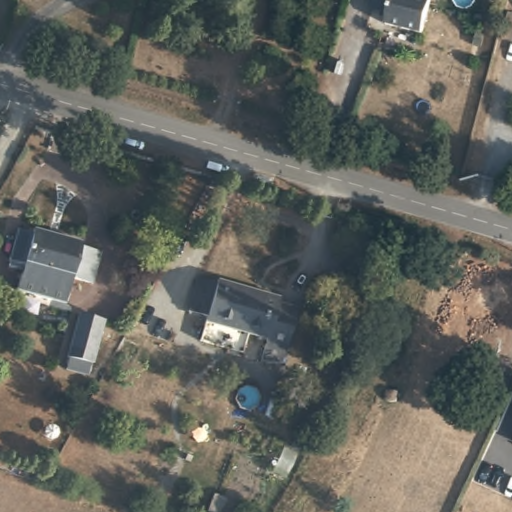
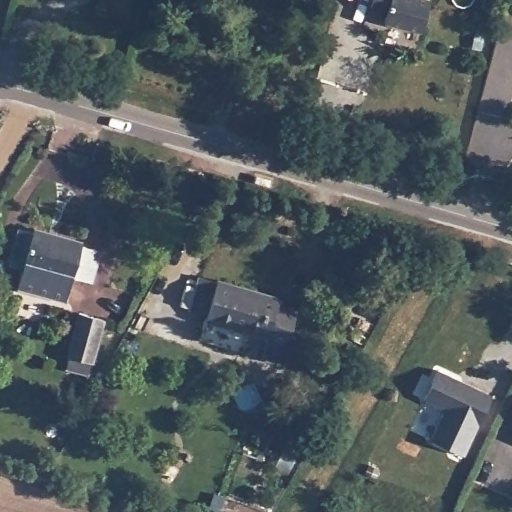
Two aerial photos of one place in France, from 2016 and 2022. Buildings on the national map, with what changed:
unchanged [(429,0),(421,28),(384,18),(387,8),(371,4),(372,0),(429,0)]
unchanged [(31,230),(32,227),(84,241),(82,245),(103,250),(94,282),(76,277),(74,282),(68,303),(20,290),(28,264),(15,261),(13,268),(4,266),(17,226),(31,230)]
unchanged [(388,262),(383,277),(347,267),(352,251),(388,262)]
unchanged [(214,279),(215,277),(277,292),(276,297),(301,303),(288,360),(262,354),(267,333),(206,318),(207,313),(187,308),(197,275),(214,279)]
unchanged [(104,315),(92,360),(66,353),(78,308),(104,315)]
new [(462,456),(429,440),(443,410),(423,400),(437,370),(490,395),(462,456)]
unchanged [(391,405),(385,404),(384,404),(382,402),(381,401),(380,400),(380,398),(380,397),(381,395),(382,393),(383,393),(384,392),(386,392),(388,392),(393,395),(391,405)]
unchanged [(511,442),(512,440),(512,442),(511,442)]

